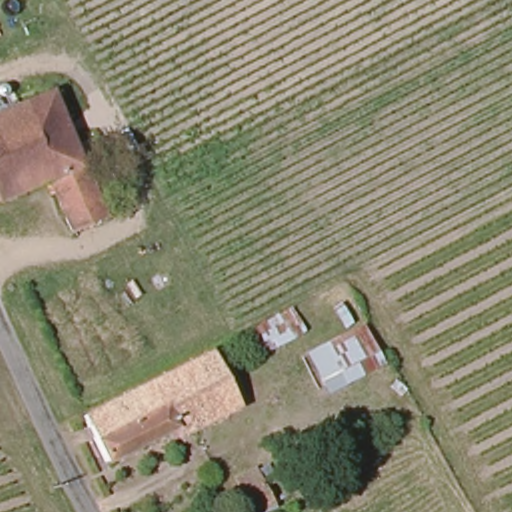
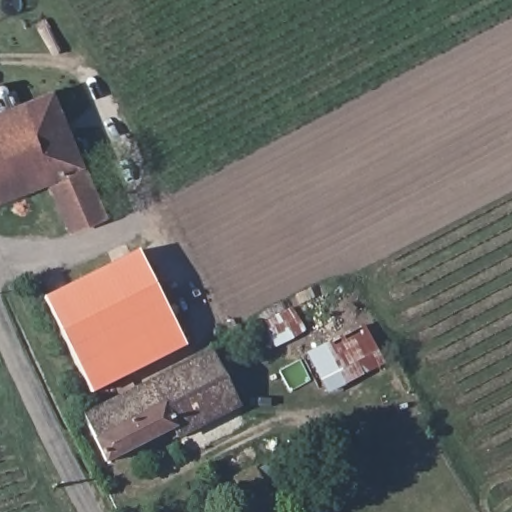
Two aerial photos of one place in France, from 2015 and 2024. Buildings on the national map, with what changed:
unchanged [(24,102),(39,96),(34,85),(51,79),(108,215),(75,228),(55,178),(24,102)]
unchanged [(0,200),(0,113),(24,102),(55,178),(0,200)]
new [(93,394),(44,298),(138,251),(187,347),(93,394)]
unchanged [(291,310),(295,319),(255,339),(252,330),(291,310)]
unchanged [(392,364),(327,398),(309,352),(367,322),(392,364)]
unchanged [(214,354),(244,410),(183,440),(178,429),(109,462),(89,418),(214,354)]
unchanged [(260,474),(273,508),(262,512),(247,512),(236,483),(260,474)]

